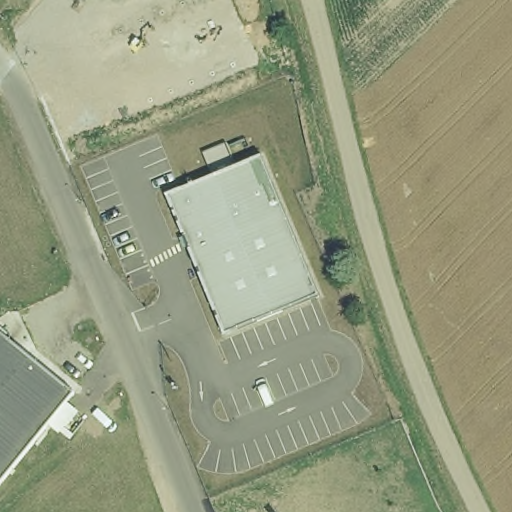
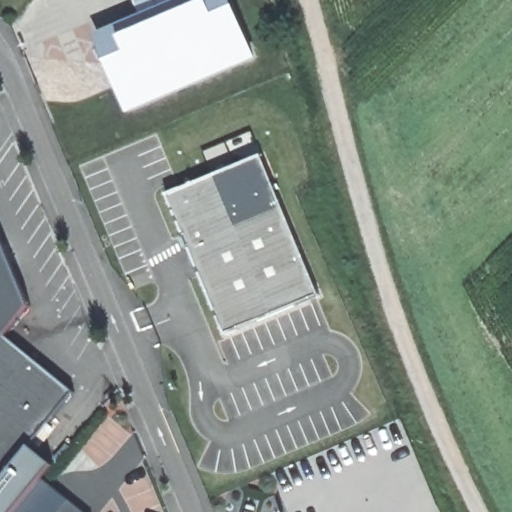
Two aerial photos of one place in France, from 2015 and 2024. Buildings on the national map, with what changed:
new [(186,0),(230,0),(253,55),(128,109),(98,38),(186,0)]
unchanged [(167,195),(263,155),(321,297),(226,337),(167,195)]
new [(0,229),(25,292),(6,335),(0,330),(0,229)]
unchanged [(76,392),(0,484),(0,330),(6,335),(76,392)]
new [(82,512),(16,512),(42,478),(82,512)]

